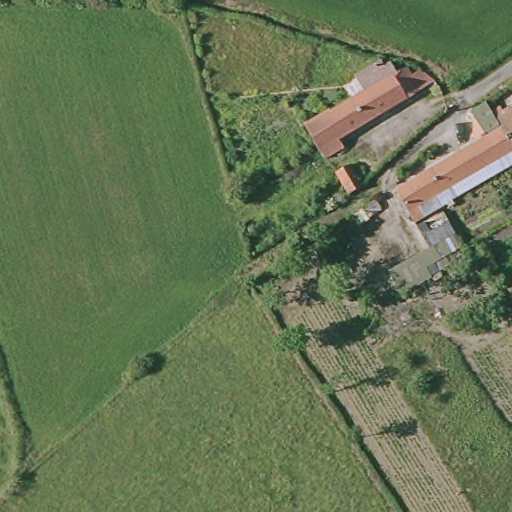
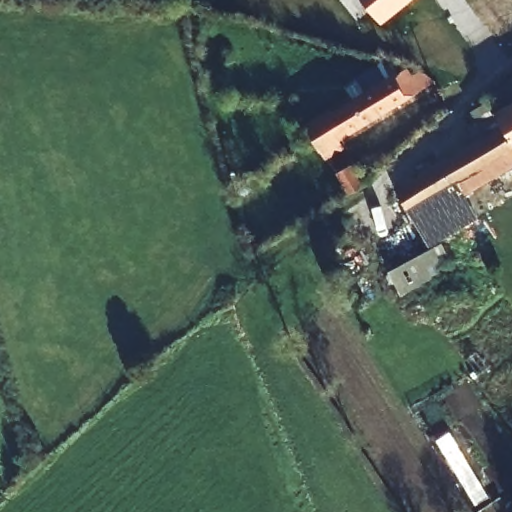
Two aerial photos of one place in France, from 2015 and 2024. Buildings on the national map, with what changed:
new [(354,0),(413,0),(374,29),(354,0)]
unchanged [(412,73),(427,86),(337,143),(340,148),(323,159),(315,148),(313,144),(304,128),(305,127),(337,107),(335,104),(333,102),(342,96),(347,102),(365,90),(355,74),(376,61),(381,69),(387,65),(392,74),(400,69),(407,76),(412,73)]
unchanged [(488,111),(476,119),(467,108),(481,99),(488,111)]
unchanged [(488,111),(495,106),(498,110),(512,101),(512,147),(499,127),(488,111)]
unchanged [(427,202),(431,209),(413,220),(394,193),(499,127),(512,147),(512,155),(509,152),(505,152),(431,199),(427,202)]
unchanged [(358,168),(371,187),(350,199),(338,180),(358,168)]
unchanged [(426,247),(420,230),(447,217),(456,234),(465,245),(427,265),(434,275),(422,281),(400,294),(386,267),(426,247)]

